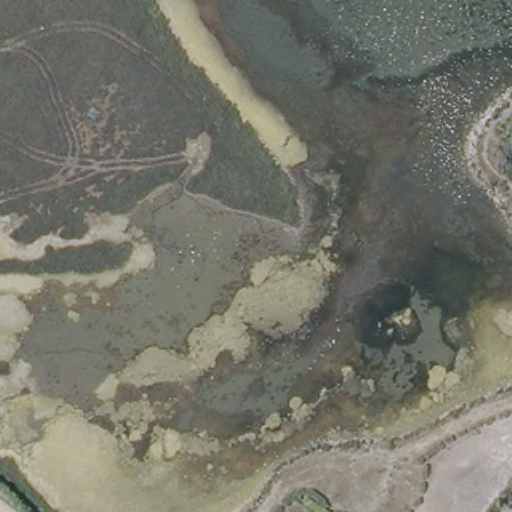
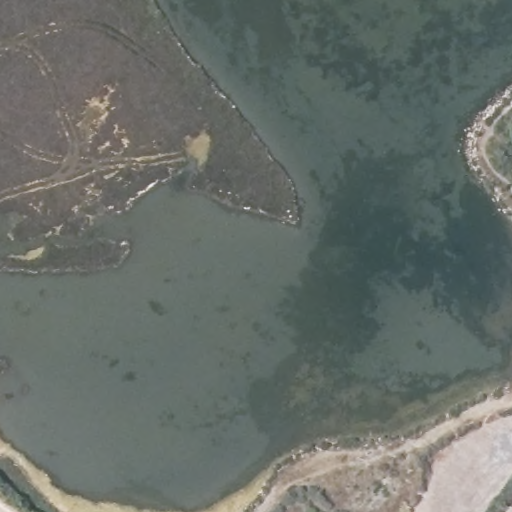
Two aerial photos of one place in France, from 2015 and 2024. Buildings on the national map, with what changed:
[]

